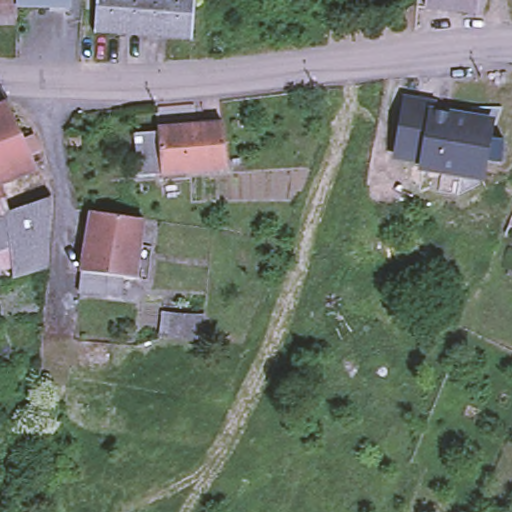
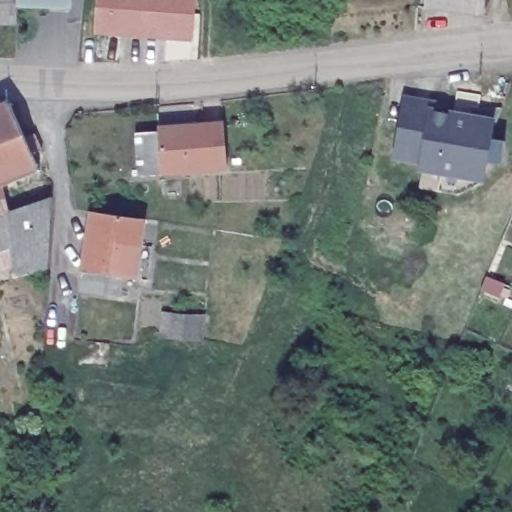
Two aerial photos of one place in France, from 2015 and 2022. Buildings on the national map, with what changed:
unchanged [(65,2),(14,2),(12,2),(12,21),(0,21),(0,0),(65,0),(65,2)]
unchanged [(96,27),(98,0),(146,0),(145,37),(126,36),(96,35),(96,27)]
unchanged [(162,38),(145,37),(146,0),(196,0),(195,31),(194,40),(162,38)]
unchanged [(476,14),(427,7),(428,0),(478,0),(476,14)]
unchanged [(0,101),(5,100),(20,136),(28,133),(35,150),(27,154),(32,169),(0,181),(0,101)]
unchanged [(425,161),(398,156),(407,102),(436,106),(435,114),(450,116),(473,120),(492,124),(492,125),(489,142),(494,144),(497,147),(495,157),(490,160),(486,160),(484,172),(482,179),(459,175),(424,169),(425,161)]
unchanged [(133,130),(157,130),(157,124),(159,124),(159,129),(202,127),(202,125),(222,124),(223,170),(157,171),(135,172),(133,130)]
unchanged [(6,247),(0,215),(0,210),(42,196),(55,266),(12,276),(6,247)]
unchanged [(79,289),(80,270),(85,209),(140,215),(135,275),(121,274),(120,292),(79,289)]
unchanged [(0,248),(0,215),(6,247),(0,248)]

